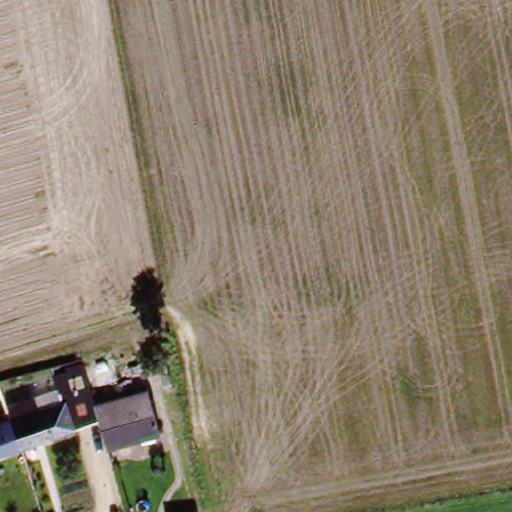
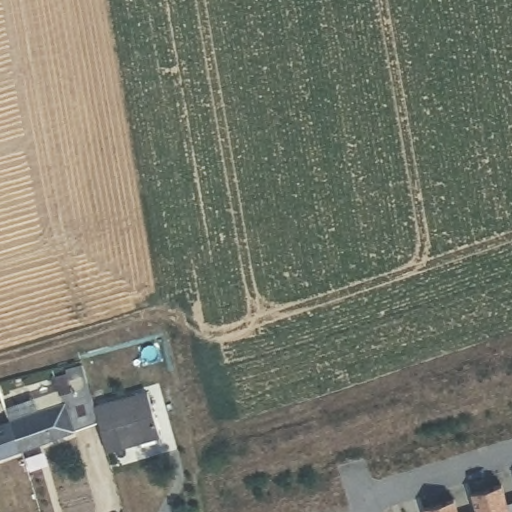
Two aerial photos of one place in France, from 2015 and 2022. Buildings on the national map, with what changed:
unchanged [(147,394),(158,439),(105,452),(97,424),(92,408),(147,394)]
unchanged [(97,424),(14,448),(7,424),(90,398),(92,408),(97,424)]
unchanged [(0,452),(0,427),(7,424),(14,448),(0,452)]
new [(476,510),(471,492),(502,483),(507,501),(512,499),(512,512),(469,512),(476,510)]
new [(423,506),(454,497),(458,512),(425,512),(423,506)]

